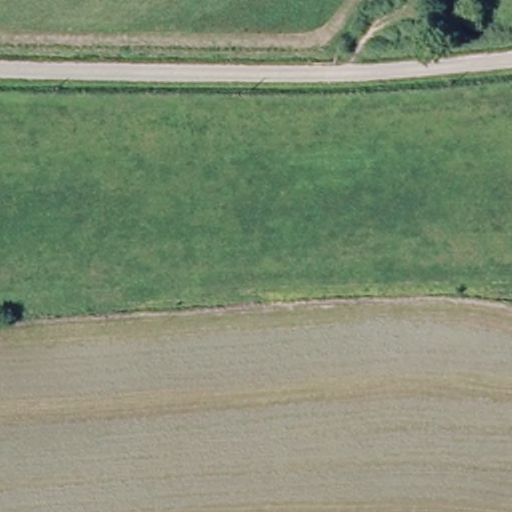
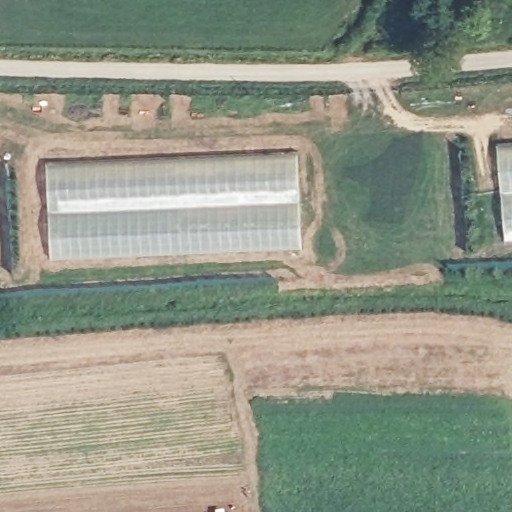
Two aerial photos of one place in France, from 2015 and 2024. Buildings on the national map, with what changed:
new [(512,238),(504,240),(496,143),(512,142),(512,238)]
new [(302,243),(52,255),(47,157),(299,147),(302,243)]

